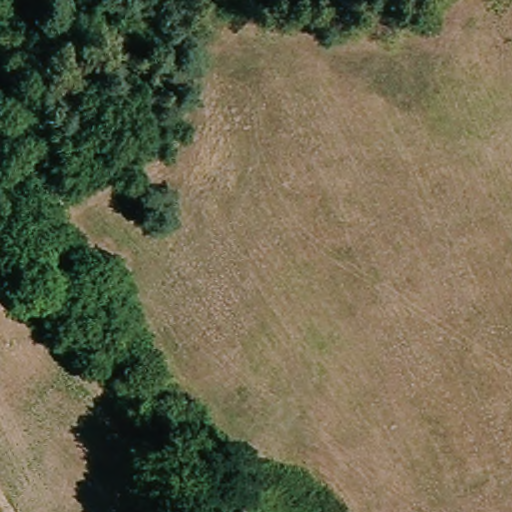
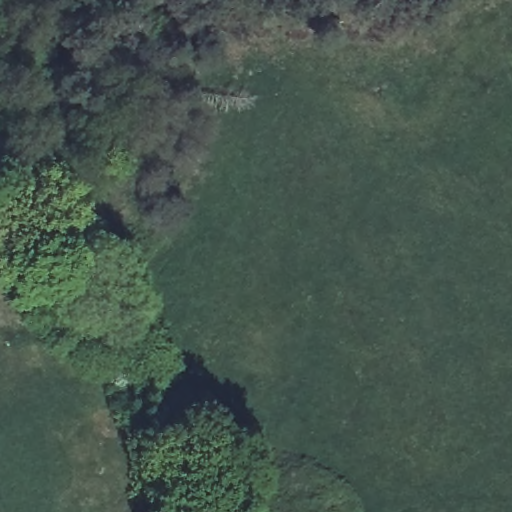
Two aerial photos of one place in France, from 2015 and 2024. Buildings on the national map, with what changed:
[]

